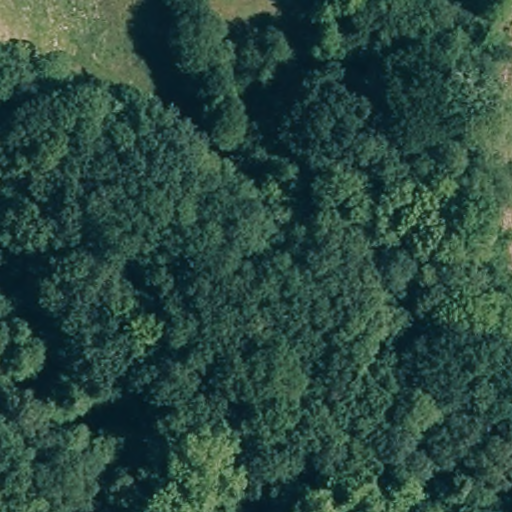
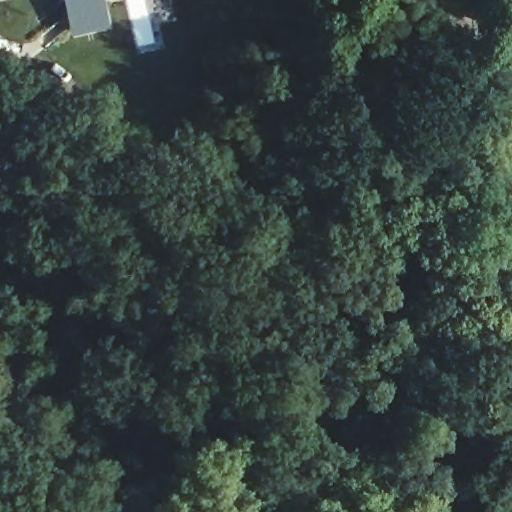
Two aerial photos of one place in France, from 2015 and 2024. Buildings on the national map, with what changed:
new [(75,31),(68,0),(102,0),(107,24),(75,31)]

